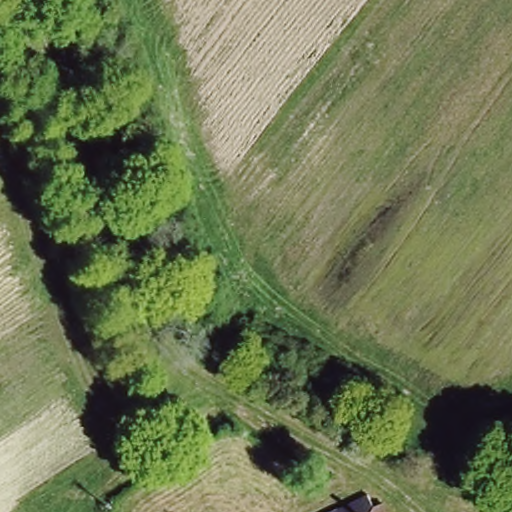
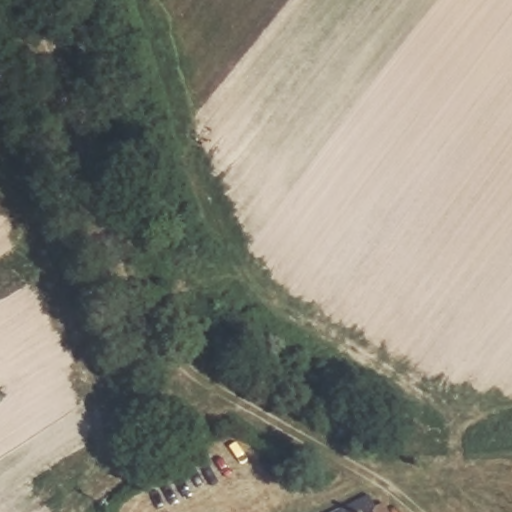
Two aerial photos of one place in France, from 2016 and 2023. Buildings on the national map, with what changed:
unchanged [(363,498),(387,512),(388,512),(337,512),(363,498)]

